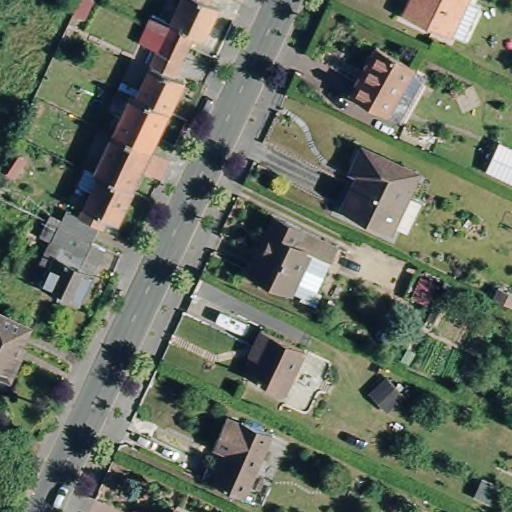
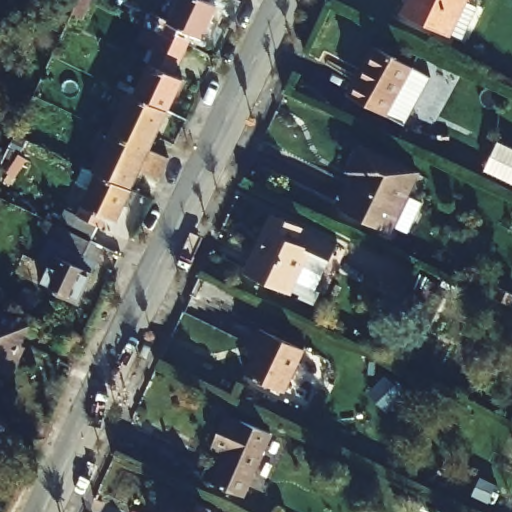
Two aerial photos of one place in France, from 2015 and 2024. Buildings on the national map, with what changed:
unchanged [(210,13),(194,47),(160,30),(163,19),(173,0),(202,0),(198,8),(210,13)]
unchanged [(446,31),(444,36),(396,14),(403,0),(461,0),(460,2),(470,7),(456,36),(446,31)]
unchanged [(163,19),(160,30),(187,44),(173,70),(147,57),(144,63),(124,54),(142,10),(163,19)]
unchanged [(399,121),(384,114),(381,118),(349,101),(375,52),(407,67),(421,74),(399,121)]
unchanged [(125,101),(144,63),(147,57),(173,70),(168,80),(175,84),(160,119),(125,101)]
unchanged [(103,137),(118,106),(106,100),(110,92),(125,101),(160,119),(141,156),(103,137)]
unchanged [(159,165),(150,183),(132,174),(123,194),(90,179),(70,169),(73,160),(89,168),(103,137),(141,156),(159,165)]
unchanged [(395,233),(375,224),(374,226),(336,209),(351,180),(338,174),(353,145),(401,167),(391,189),(410,199),(395,233)]
unchanged [(496,149),(512,156),(512,185),(485,172),(496,149)]
unchanged [(61,207),(74,213),(90,179),(123,194),(109,225),(100,221),(94,233),(84,254),(80,251),(70,273),(81,280),(68,309),(33,292),(42,273),(33,268),(41,247),(30,241),(36,226),(50,234),(61,207)]
unchanged [(280,224),(315,241),(332,249),(320,275),(305,269),(292,295),(255,277),(280,224)]
unchanged [(0,377),(0,317),(30,330),(6,380),(0,377)]
unchanged [(260,326),(301,346),(280,395),(246,380),(258,352),(249,348),(260,326)]
unchanged [(274,437),(246,499),(203,478),(208,468),(221,473),(230,455),(218,448),(230,421),(242,427),(244,423),(274,437)]

